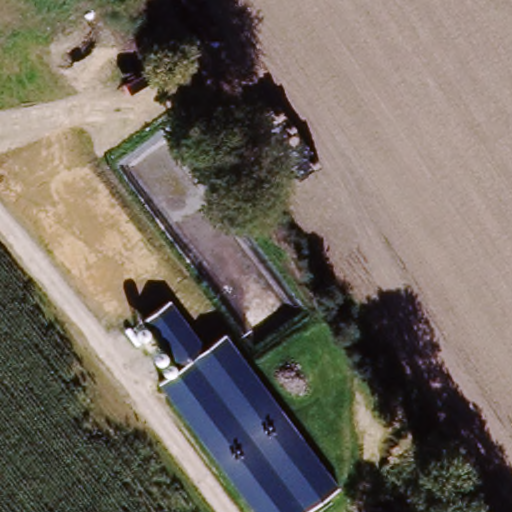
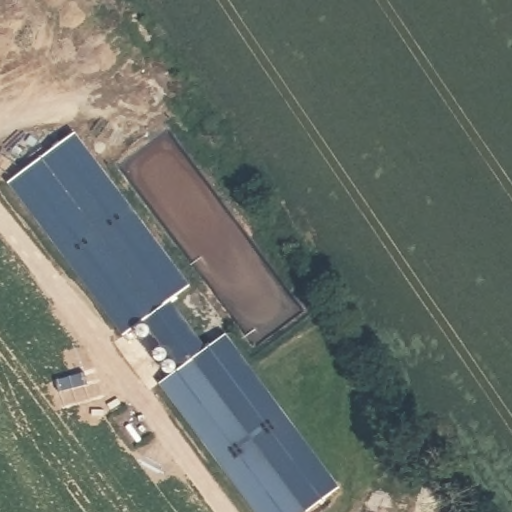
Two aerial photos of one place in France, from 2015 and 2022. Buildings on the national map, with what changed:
new [(145,320),(122,337),(7,185),(74,135),(190,286),(171,300),(145,320)]
unchanged [(180,368),(145,320),(171,300),(208,349),(227,334),(338,485),(304,512),(255,512),(159,385),(180,368)]

